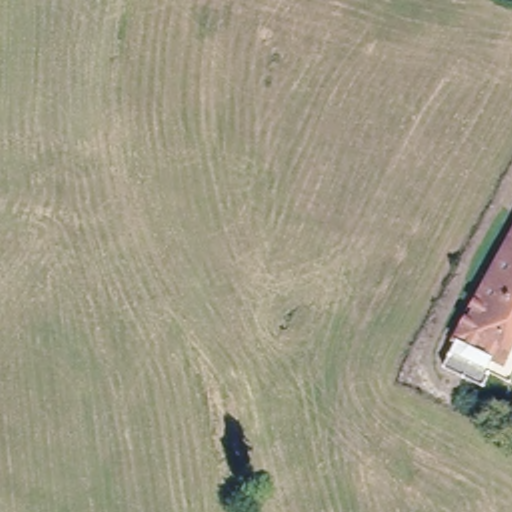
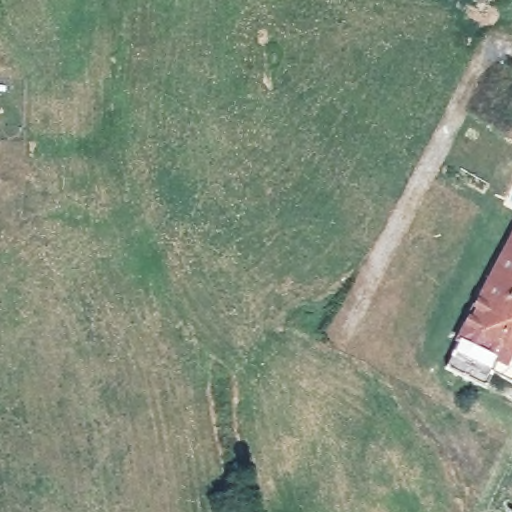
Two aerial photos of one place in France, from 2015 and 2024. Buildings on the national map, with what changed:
unchanged [(512,230),(512,362),(458,335),(461,328),(512,230)]
unchanged [(512,362),(512,374),(509,381),(450,350),(458,335),(512,362)]
unchanged [(512,374),(512,382),(509,381),(512,374)]

